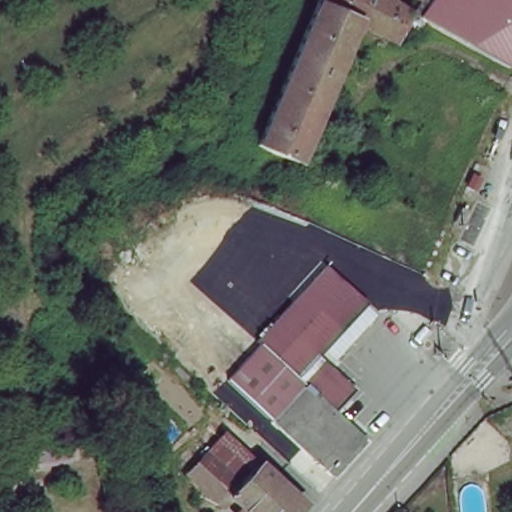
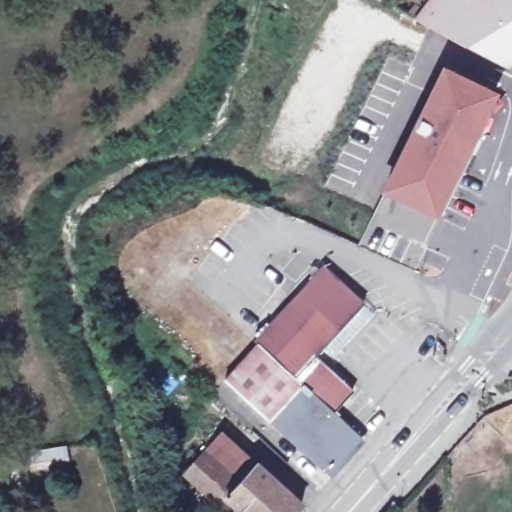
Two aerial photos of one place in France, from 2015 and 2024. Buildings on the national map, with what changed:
demolished [(420,13),(412,28),(399,22),(391,38),(355,20),(295,156),(294,156),(274,148),(263,143),(257,155),(251,151),(256,139),(315,0),(397,0),(408,6),(420,13)]
unchanged [(505,64),(421,14),(420,13),(408,6),(412,0),(512,0),(512,60),(505,64)]
new [(442,62),(499,89),(436,217),(380,189),(442,62)]
unchanged [(447,232),(440,228),(446,214),(454,218),(447,232)]
unchanged [(334,418),(362,443),(327,479),(234,392),(226,383),(261,345),(258,342),(325,271),(365,309),(339,337),(317,314),(275,357),(338,414),(334,418)]
unchanged [(339,337),(317,361),(354,397),(338,414),(275,357),(317,314),(339,337)]
unchanged [(205,458),(224,436),(256,468),(236,488),(205,458)]
unchanged [(216,508),(185,479),(205,458),(236,488),(225,499),(216,508)]
unchanged [(256,468),(258,466),(300,508),(296,512),(239,512),(225,499),(236,488),(256,468)]

